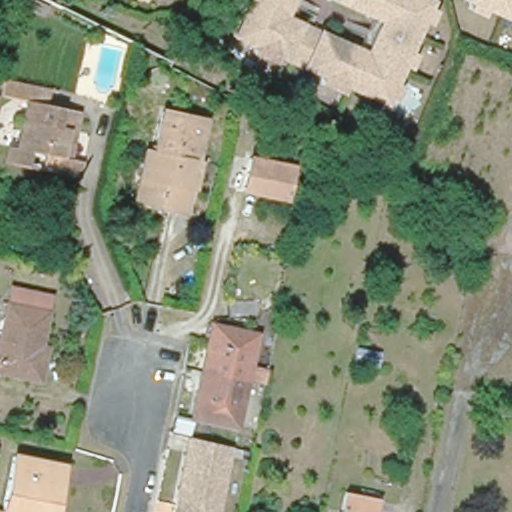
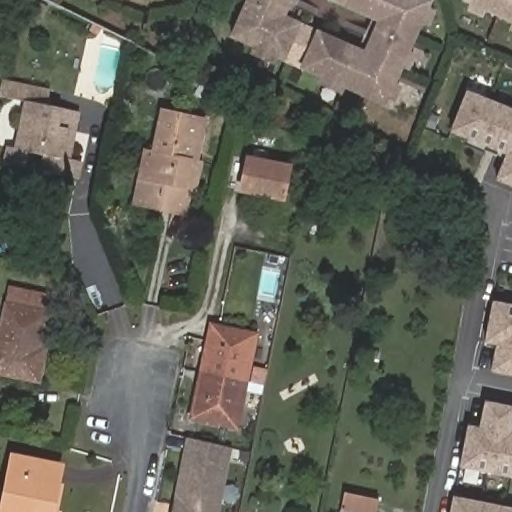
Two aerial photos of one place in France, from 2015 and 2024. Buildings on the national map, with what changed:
unchanged [(362,44),(364,54),(372,52),(367,41),(375,24),(387,20),(385,12),(372,17),(336,0),(431,0),(420,27),(400,75),(388,100),(358,87),(300,63),(235,36),(246,9),(250,0),(291,0),(287,8),(277,12),(278,21),(292,15),(303,20),(308,22),(362,44)]
unchanged [(480,0),(512,0),(512,13),(500,9),(480,0)]
unchanged [(82,160),(79,177),(44,170),(48,155),(30,150),(26,167),(5,163),(9,145),(17,146),(27,102),(0,96),(0,88),(2,76),(55,87),(50,105),(80,111),(75,130),(69,158),(82,160)]
new [(508,156),(451,131),(466,92),(512,110),(512,184),(498,180),(508,156)]
unchanged [(147,187),(152,161),(160,119),(170,121),(211,130),(202,173),(207,174),(203,196),(199,195),(194,222),(167,217),(142,212),(147,187)]
unchanged [(292,165),(286,197),(245,189),(252,157),(292,165)]
unchanged [(42,361),(37,385),(0,377),(0,326),(3,311),(7,294),(45,302),(41,319),(35,351),(44,353),(42,361)]
new [(498,349),(485,346),(493,301),(512,305),(512,373),(493,370),(498,349)]
unchanged [(215,334),(255,342),(246,386),(205,378),(215,334)]
unchanged [(246,386),(237,432),(194,423),(205,378),(246,386)]
new [(471,428),(482,430),(487,404),(512,409),(512,428),(511,436),(512,436),(512,475),(462,465),(471,428)]
unchanged [(197,440),(199,440),(221,445),(235,448),(222,512),(180,512),(192,454),(195,439),(197,440)]
unchanged [(66,472),(58,512),(3,512),(14,460),(66,472)]
new [(512,512),(452,512),(454,500),(512,512)]
unchanged [(375,512),(339,512),(341,504),(375,512)]

